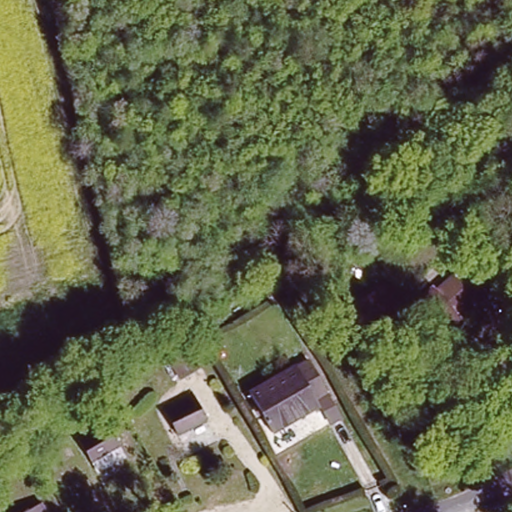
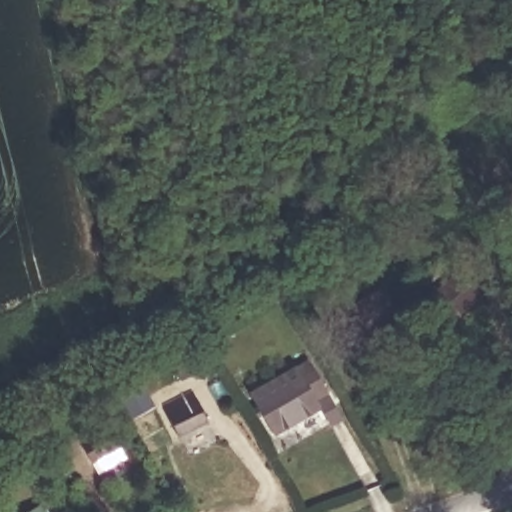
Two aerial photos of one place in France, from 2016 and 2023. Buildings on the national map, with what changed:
unchanged [(429,202),(444,193),(453,208),(438,217),(429,202)]
unchanged [(449,284),(467,264),(489,284),(465,308),(436,333),(401,306),(444,277),(449,284)]
unchanged [(337,323),(379,299),(388,316),(347,340),(337,323)]
unchanged [(186,375),(174,382),(160,359),(173,351),(186,375)]
unchanged [(273,429),(250,390),(305,359),(322,389),(311,396),(316,404),(273,429)]
unchanged [(183,441),(178,432),(162,404),(187,390),(202,417),(207,426),(183,441)]
unchanged [(36,434),(50,425),(59,441),(45,449),(36,434)]
unchanged [(73,442),(99,426),(112,449),(86,464),(73,442)]

